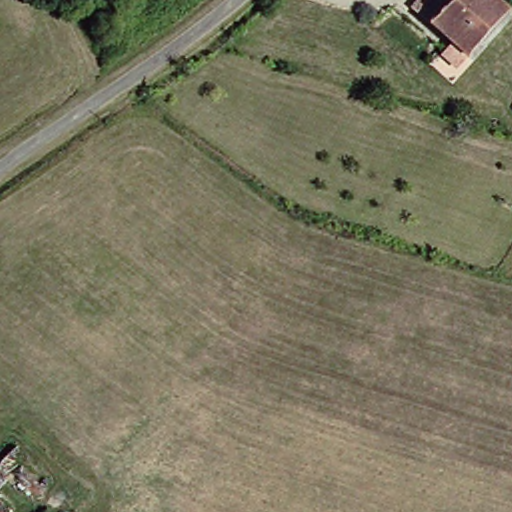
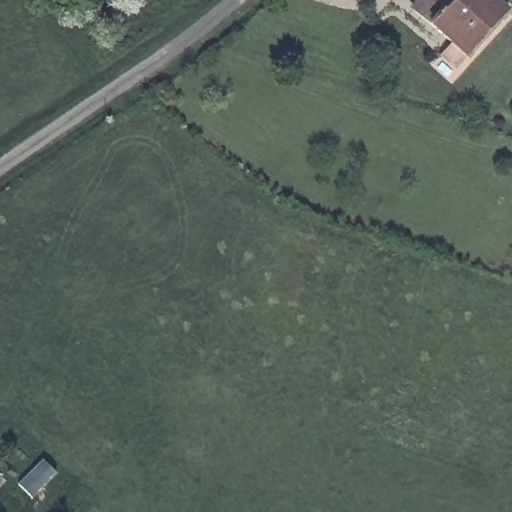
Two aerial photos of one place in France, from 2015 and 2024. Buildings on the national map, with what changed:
unchanged [(457,40),(432,19),(415,6),(420,0),(502,0),(510,6),(471,53),(461,65),(446,52),(457,40)]
unchanged [(21,512),(0,512),(0,471),(19,451),(50,483),(21,512)]

